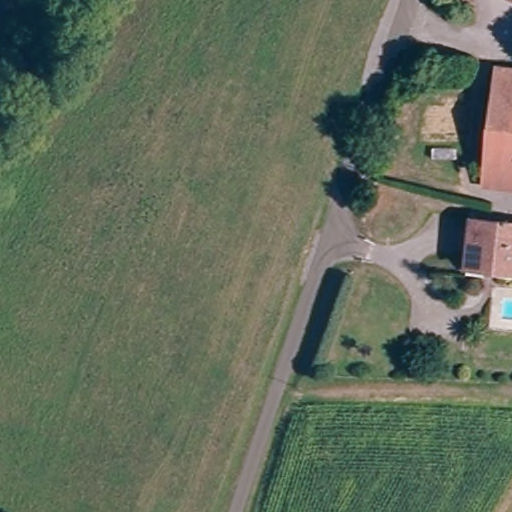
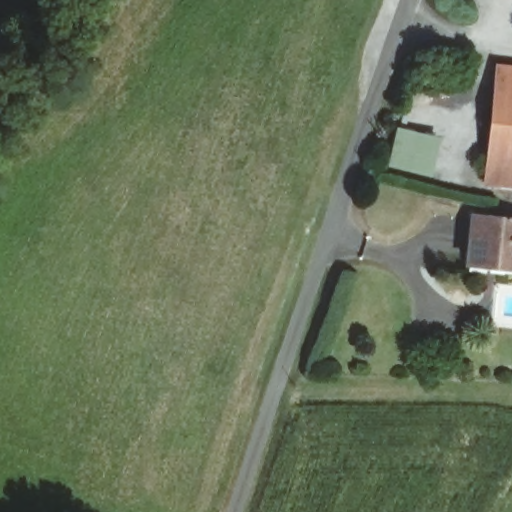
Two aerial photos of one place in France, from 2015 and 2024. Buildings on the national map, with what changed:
unchanged [(498,66),(512,67),(512,185),(487,183),(498,66)]
new [(396,126),(442,136),(432,177),(386,166),(396,126)]
unchanged [(467,269),(471,221),(512,225),(512,273),(485,271),(467,269)]

